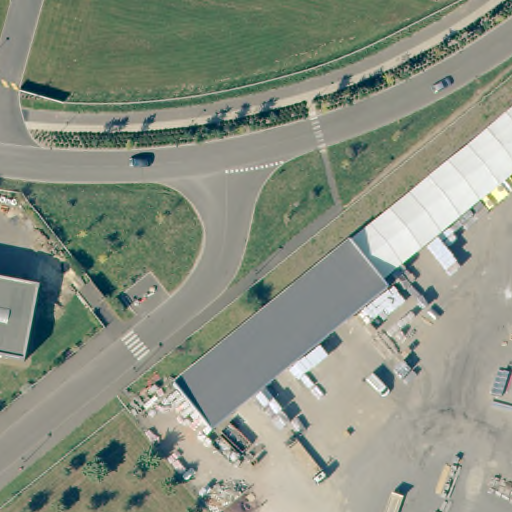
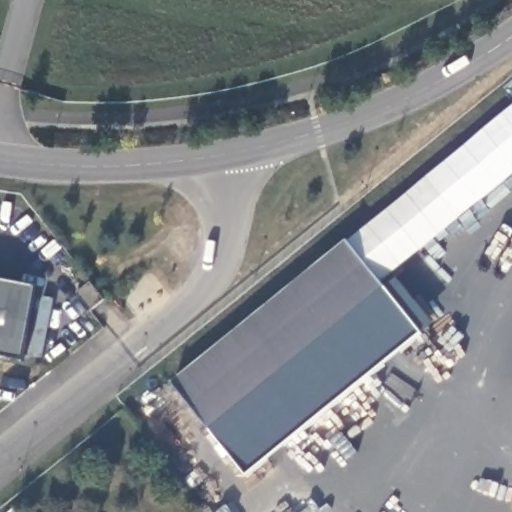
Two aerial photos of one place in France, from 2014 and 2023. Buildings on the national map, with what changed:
unchanged [(380,284),(386,292),(332,335),(326,340),(277,379),(254,398),(209,434),(171,387),(215,352),(288,293),(466,150),(512,113),(512,178),(460,220),(380,284)]
unchanged [(38,287),(23,363),(0,358),(0,280),(38,287)]
unchanged [(90,280),(105,299),(90,312),(74,292),(90,280)]
new [(254,398),(277,379),(326,340),(332,335),(386,292),(400,282),(434,327),(246,477),(209,434),(254,398)]

